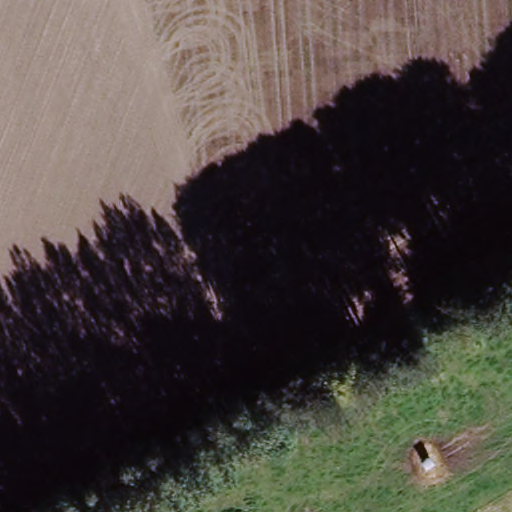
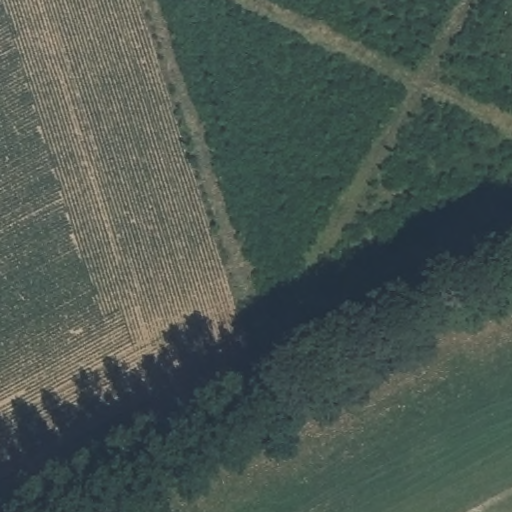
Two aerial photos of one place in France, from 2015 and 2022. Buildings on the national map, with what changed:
[]

